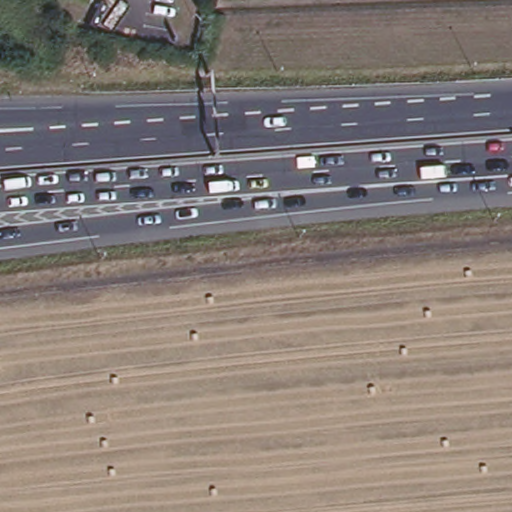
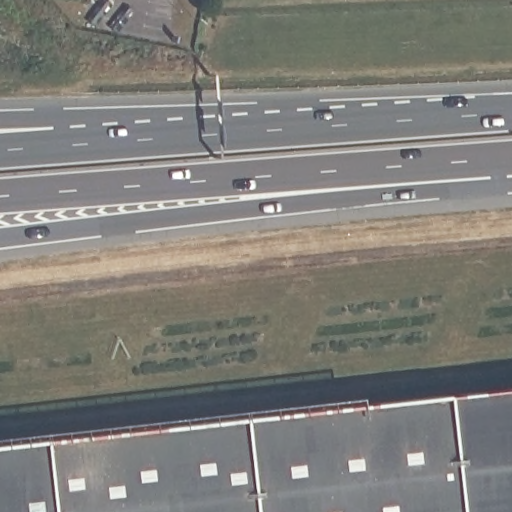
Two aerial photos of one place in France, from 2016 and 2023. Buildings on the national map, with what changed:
new [(512,512),(0,512),(0,445),(512,393),(512,512)]

